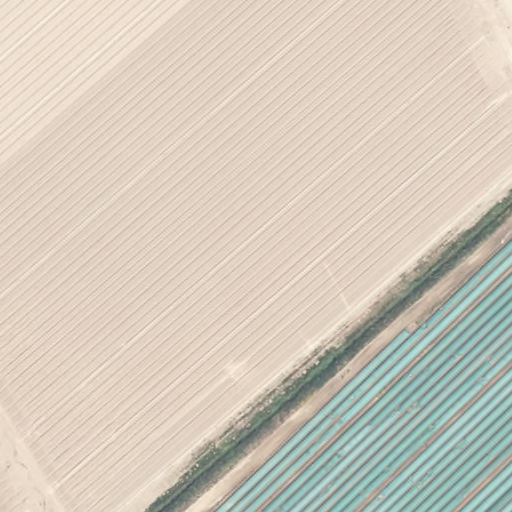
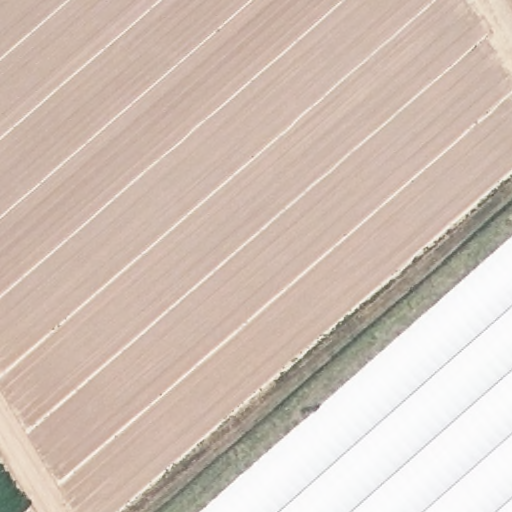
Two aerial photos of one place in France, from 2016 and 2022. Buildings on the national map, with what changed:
new [(512,512),(200,512),(512,235),(512,512)]

